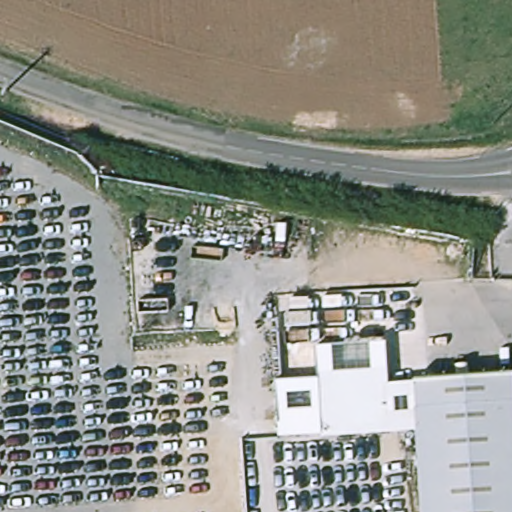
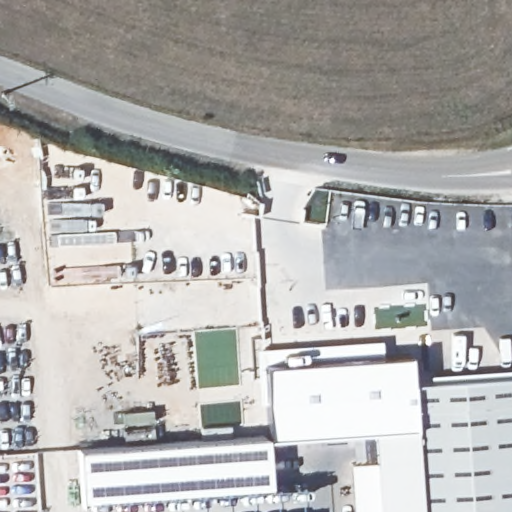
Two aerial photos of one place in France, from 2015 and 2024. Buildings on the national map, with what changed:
unchanged [(276,438),(276,424),(279,420),(274,382),(315,379),(315,347),(385,344),(388,386),(413,385),(415,430),(276,438)]
unchanged [(420,512),(413,385),(512,379),(512,512),(420,512)]
new [(375,432),(415,430),(420,512),(352,512),(348,462),(375,461),(375,432)]
new [(79,448),(265,435),(271,486),(82,499),(79,448)]

